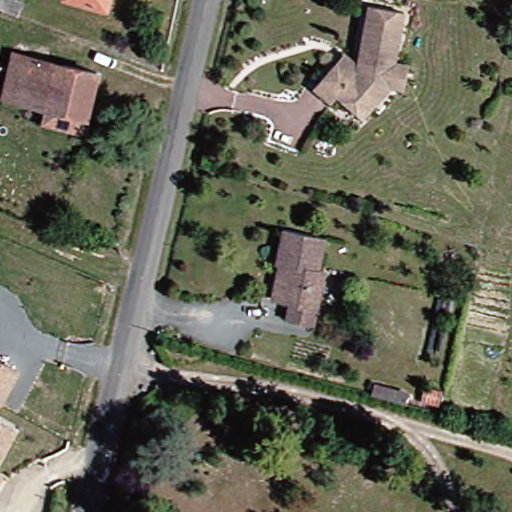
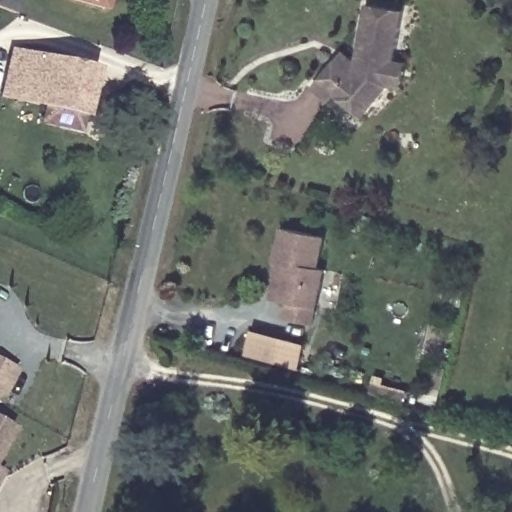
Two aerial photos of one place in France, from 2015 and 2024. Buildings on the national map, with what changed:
unchanged [(72,0),(113,0),(110,9),(72,0)]
unchanged [(339,96),(331,104),(315,90),(338,63),(343,54),(358,64),(373,2),(407,10),(399,57),(414,60),(407,85),(393,83),(374,111),(364,119),(353,109),(339,96)]
unchanged [(72,128),(54,125),(56,105),(4,96),(14,47),(99,65),(87,114),(84,131),(72,128)]
unchanged [(282,262),(291,225),(332,235),(325,268),(332,270),(320,320),(293,314),(296,299),(285,296),(275,295),(282,262)]
new [(306,344),(299,371),(244,356),(252,329),(306,344)]
unchanged [(0,399),(0,363),(14,370),(0,399)]
unchanged [(0,443),(0,423),(8,427),(0,443)]

